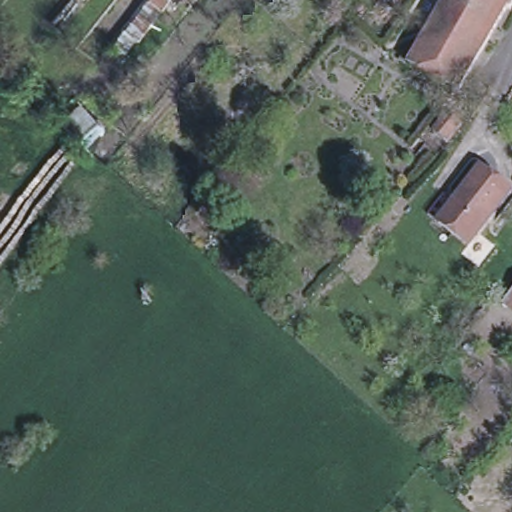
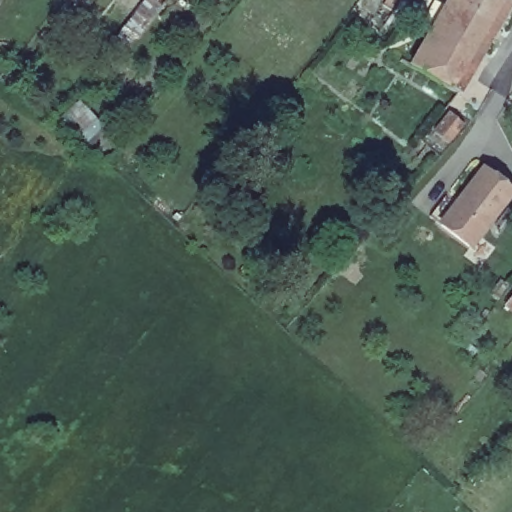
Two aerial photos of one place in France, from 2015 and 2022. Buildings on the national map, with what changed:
unchanged [(50,21),(68,0),(86,0),(61,30),(50,21)]
unchanged [(435,0),(461,0),(467,3),(427,71),(402,56),(435,0)]
unchanged [(511,0),(512,0),(512,33),(485,79),(474,98),(427,71),(467,3),(468,0),(502,0),(508,4),(511,0)]
unchanged [(463,121),(449,141),(435,131),(449,111),(463,121)]
unchanged [(512,188),(512,193),(472,244),(442,220),(483,166),(512,188)]
unchanged [(503,306),(512,295),(512,313),(503,306)]

